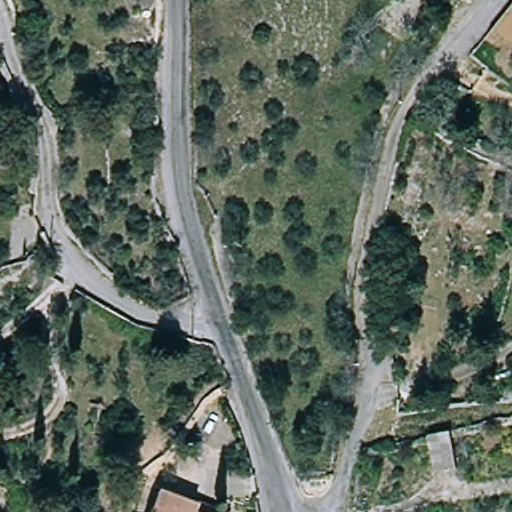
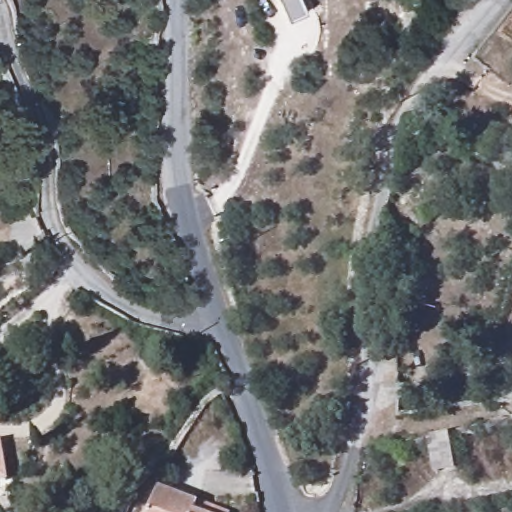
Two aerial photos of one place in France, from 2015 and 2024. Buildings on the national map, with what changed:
new [(287,21),(279,0),(301,0),(306,13),(287,21)]
unchanged [(455,469),(429,473),(423,432),(449,427),(455,469)]
new [(1,443),(8,483),(0,485),(0,443),(1,443)]
unchanged [(189,508),(191,504),(214,512),(143,512),(151,492),(189,508)]

